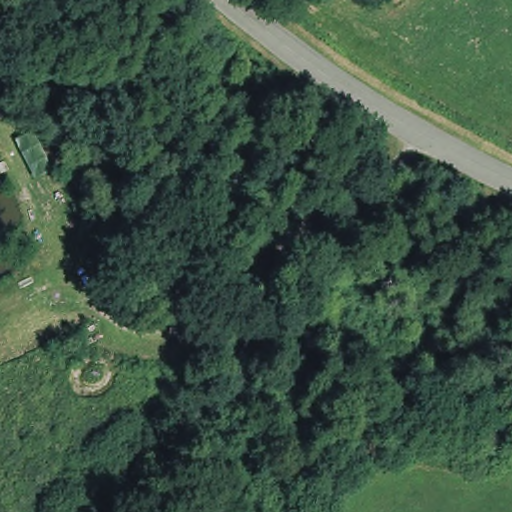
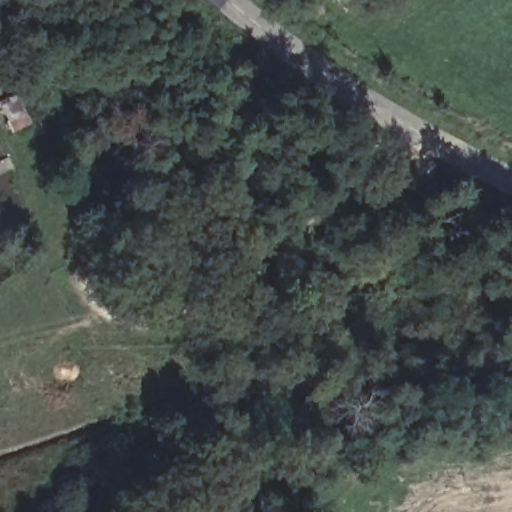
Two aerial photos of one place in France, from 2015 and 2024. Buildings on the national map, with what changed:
unchanged [(0,112),(0,104),(15,95),(25,113),(10,124),(0,112)]

